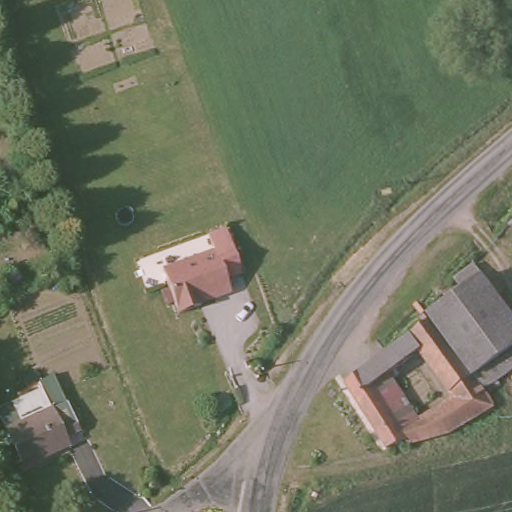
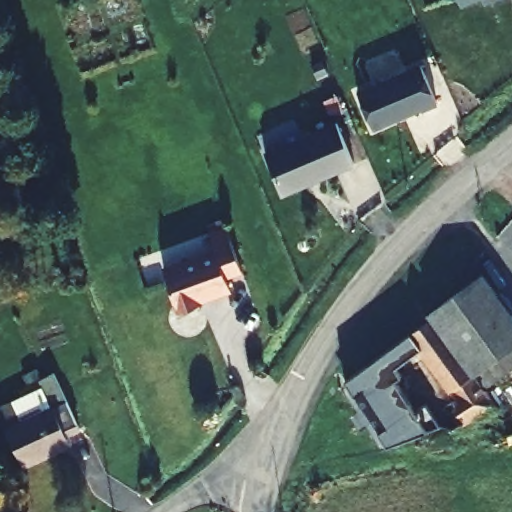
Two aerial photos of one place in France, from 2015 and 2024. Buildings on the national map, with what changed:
new [(462,5),(459,0),(474,0),(462,5)]
new [(484,4),(483,0),(493,0),(484,4)]
new [(360,92),(421,66),(435,102),(374,128),(360,92)]
new [(337,123),(356,165),(284,195),(266,152),(337,123)]
unchanged [(242,261),(228,267),(233,281),(200,293),(201,297),(180,304),(164,263),(215,243),(210,225),(227,219),(242,261)]
demolished [(512,225),(512,244),(503,232),(512,225)]
unchanged [(475,258),(484,270),(512,309),(512,365),(487,384),(480,374),(433,313),(430,309),(464,285),(456,273),(475,258)]
unchanged [(417,299),(425,309),(420,313),(412,302),(417,299)]
unchanged [(410,439),(408,435),(388,442),(347,376),(433,313),(480,374),(487,384),(496,400),(453,428),(410,439)]
unchanged [(32,383),(27,375),(42,367),(47,376),(32,383)]
unchanged [(83,428),(70,434),(74,442),(28,464),(2,407),(48,386),(45,379),(58,372),(61,380),(83,428)]

